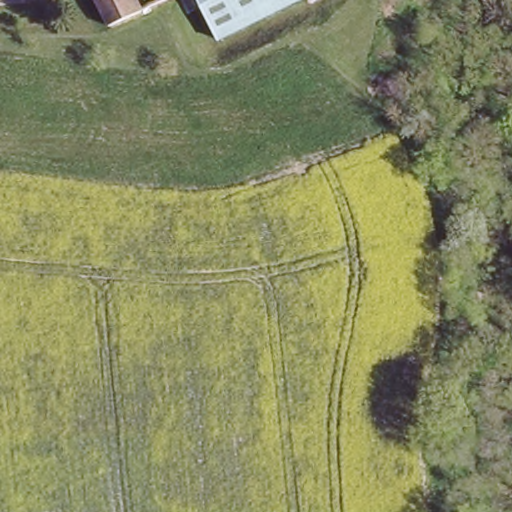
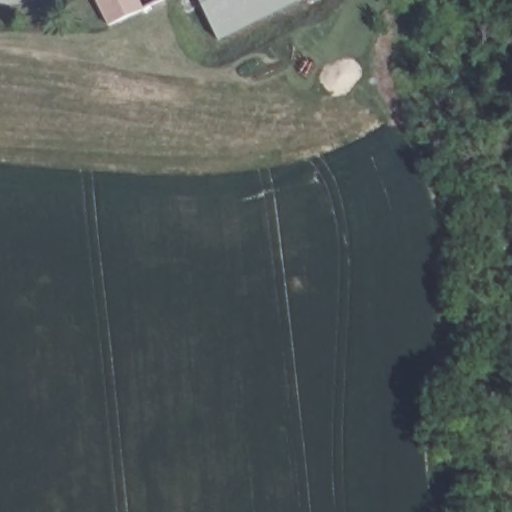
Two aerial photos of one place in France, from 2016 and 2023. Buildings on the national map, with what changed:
unchanged [(87,9),(83,0),(122,0),(128,12),(98,26),(87,9)]
unchanged [(201,0),(302,0),(220,40),(201,0)]

